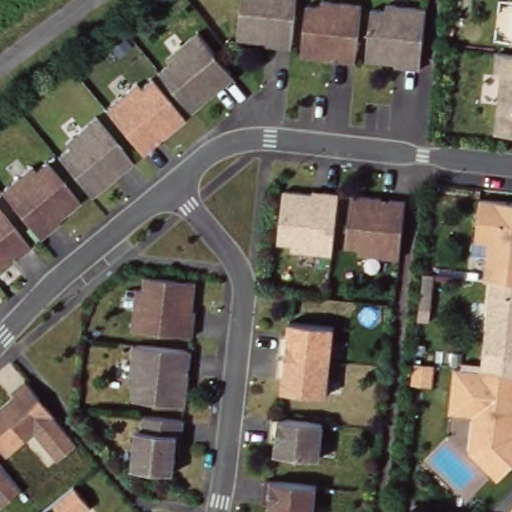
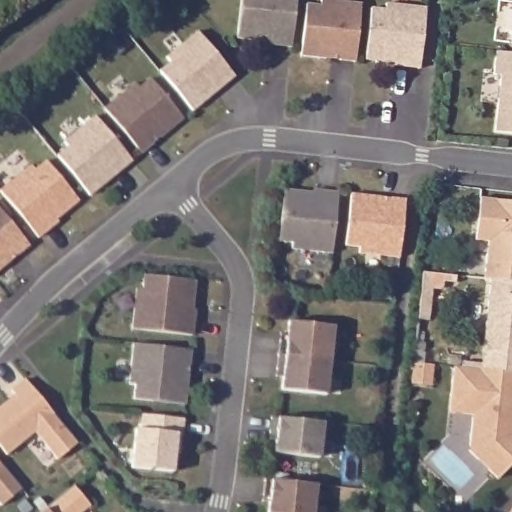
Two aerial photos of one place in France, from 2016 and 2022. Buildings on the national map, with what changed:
unchanged [(296,42),(243,36),(248,0),(299,0),(296,42)]
unchanged [(363,2),(360,58),(307,52),(313,0),(353,0),(363,2)]
unchanged [(428,6),(423,63),(371,57),(377,2),(428,6)]
unchanged [(200,32),(238,76),(198,107),(161,65),(200,32)]
unchanged [(512,132),(498,131),(503,75),(494,73),(496,51),(512,53),(512,132)]
unchanged [(147,74),(186,116),(143,149),(108,107),(147,74)]
unchanged [(98,115),(135,158),(93,191),(58,151),(98,115)]
unchanged [(45,157),(81,198),(42,234),(4,191),(45,157)]
unchanged [(314,193),(315,187),(342,191),(336,249),(296,248),(296,242),(283,238),(287,189),(314,193)]
unchanged [(407,198),(403,256),(362,253),(363,243),(349,241),(355,192),(407,198)]
unchanged [(512,279),(497,278),(488,277),(491,241),(477,238),(482,195),(512,198),(512,279)]
unchanged [(30,244),(0,267),(0,205),(30,244)]
unchanged [(200,279),(197,335),(135,331),(138,287),(146,288),(148,272),(200,279)]
unchanged [(512,279),(512,352),(489,350),(496,283),(497,278),(512,279)]
unchanged [(337,325),(330,395),(285,390),(290,315),(337,325)]
unchanged [(194,348),(189,403),(135,399),(139,344),(194,348)]
unchanged [(512,463),(500,475),(473,446),(473,410),(452,408),(456,365),(512,369),(512,463)]
unchanged [(20,395),(17,391),(30,380),(83,443),(63,460),(40,432),(11,455),(0,441),(0,411),(16,398),(20,395)]
unchanged [(186,417),(180,472),(136,468),(142,411),(186,417)]
unchanged [(326,418),(323,457),(277,452),(280,415),(326,418)]
unchanged [(26,489),(6,506),(0,498),(0,456),(26,489)]
unchanged [(316,512),(271,512),(273,477),(318,480),(316,512)]
unchanged [(90,505),(82,512),(42,512),(74,486),(90,505)]
unchanged [(512,512),(510,512),(509,511),(512,508),(512,512)]

